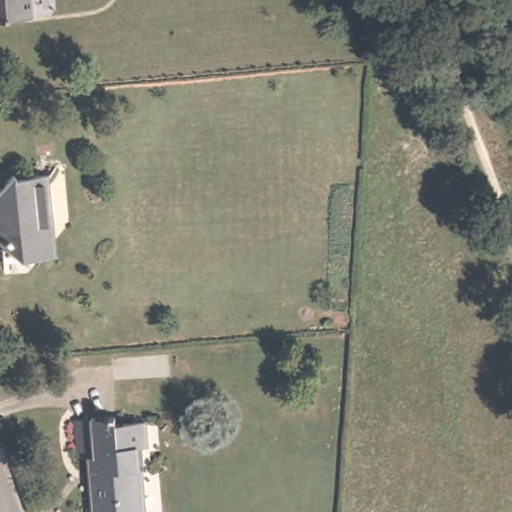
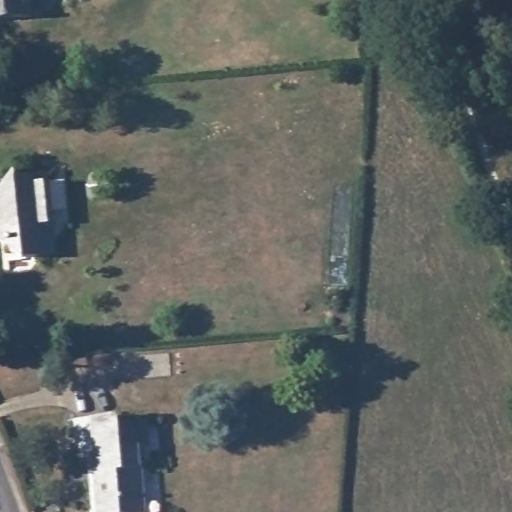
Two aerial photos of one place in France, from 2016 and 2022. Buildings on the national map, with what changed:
unchanged [(0,0),(28,0),(29,16),(0,20),(0,0)]
unchanged [(42,181),(44,205),(52,211),(45,220),(46,235),(32,253),(21,254),(17,251),(2,252),(1,239),(0,238),(0,176),(47,171),(42,181)]
unchanged [(152,448),(142,449),(146,512),(98,512),(94,460),(81,460),(79,420),(121,417),(122,424),(150,422),(152,448)]

